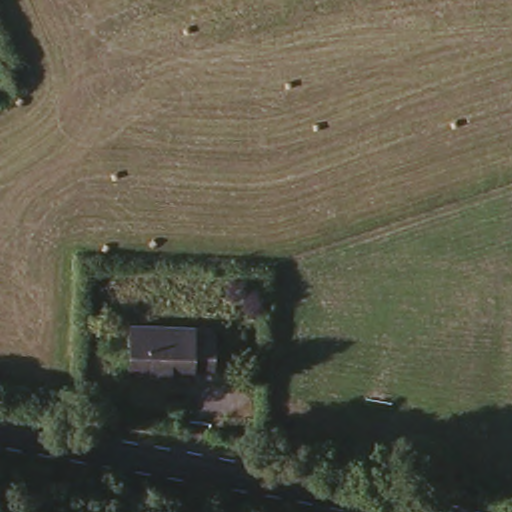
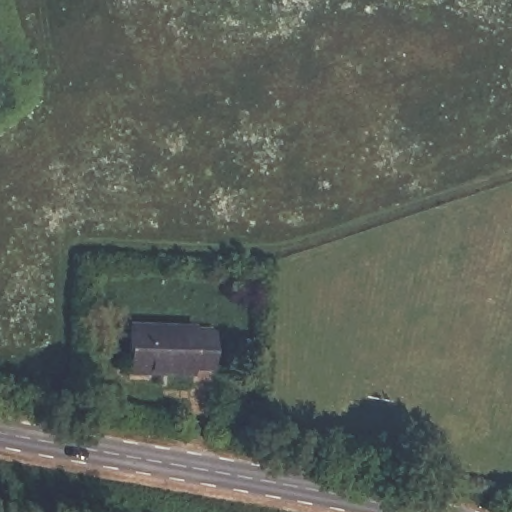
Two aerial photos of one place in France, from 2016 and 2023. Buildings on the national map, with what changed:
unchanged [(128,319),(190,321),(189,325),(214,327),(214,363),(189,363),(190,372),(125,371),(128,319)]

